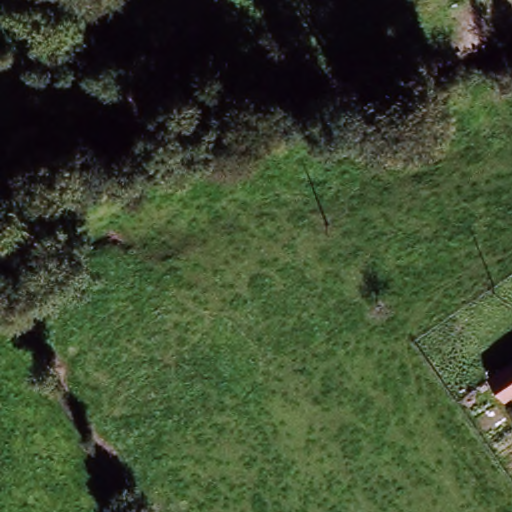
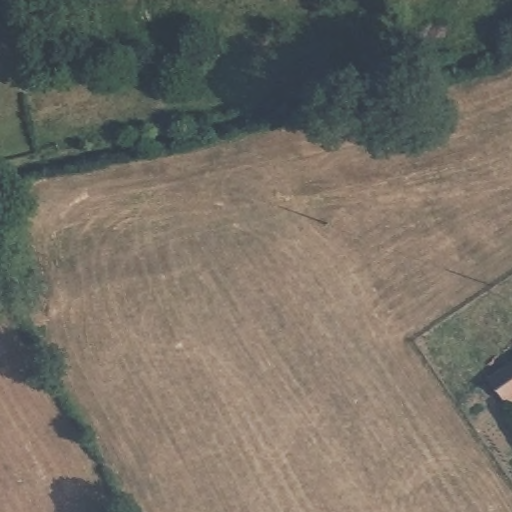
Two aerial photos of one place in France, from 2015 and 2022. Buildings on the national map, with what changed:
unchanged [(489,383),(512,368),(512,401),(505,406),(489,383)]

